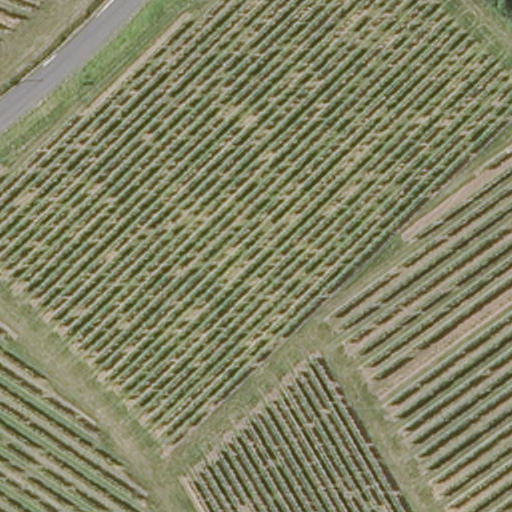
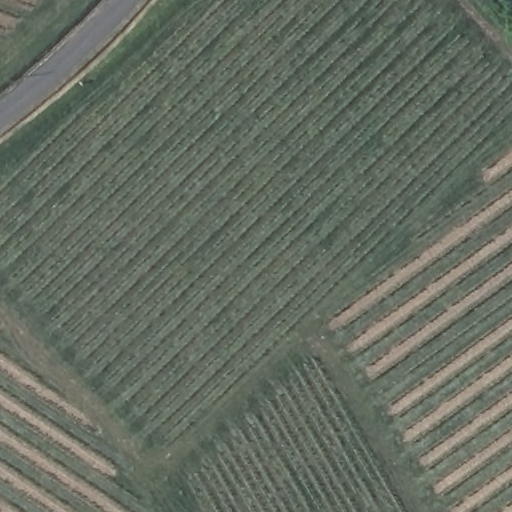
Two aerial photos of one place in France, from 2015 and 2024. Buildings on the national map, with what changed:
[]

